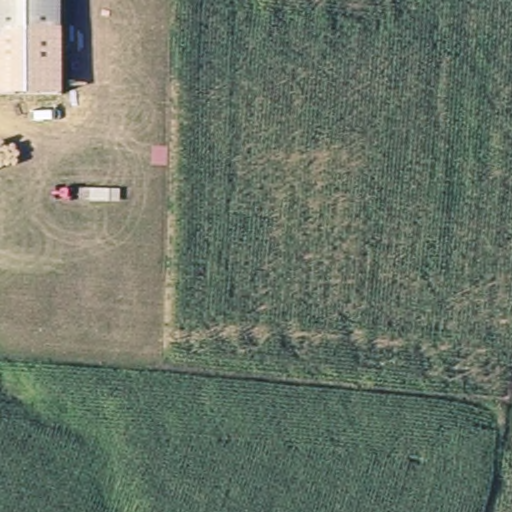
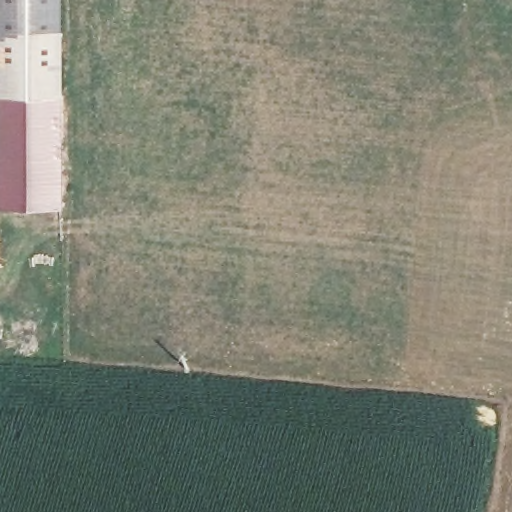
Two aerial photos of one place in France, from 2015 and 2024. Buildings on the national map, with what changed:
unchanged [(59,33),(59,37),(0,36),(0,0),(59,0),(59,33)]
unchanged [(59,37),(60,95),(0,95),(0,36),(59,37)]
new [(60,95),(62,94),(63,204),(0,204),(0,95),(60,95)]

